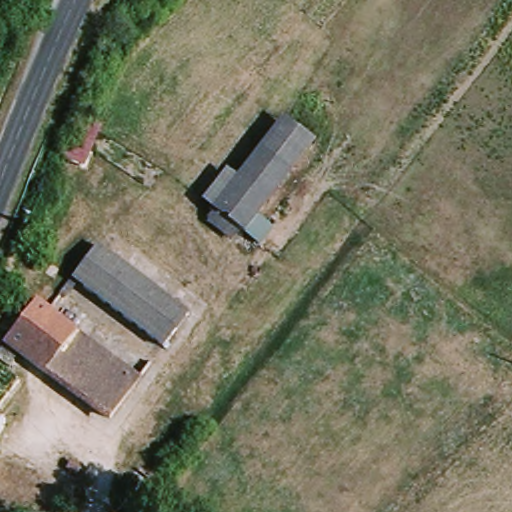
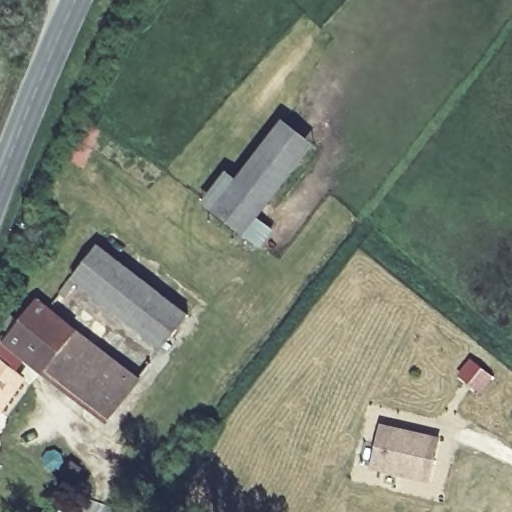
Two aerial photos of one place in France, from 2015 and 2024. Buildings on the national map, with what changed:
unchanged [(262,221),(277,239),(265,253),(248,238),(235,250),(207,226),(214,215),(202,205),(227,173),(237,179),(282,124),(316,146),(262,221)]
unchanged [(100,247),(190,316),(164,352),(73,282),(100,247)]
unchanged [(33,302),(46,311),(55,298),(147,367),(107,420),(4,341),(33,302)]
new [(430,482),(371,468),(381,424),(440,437),(430,482)]

